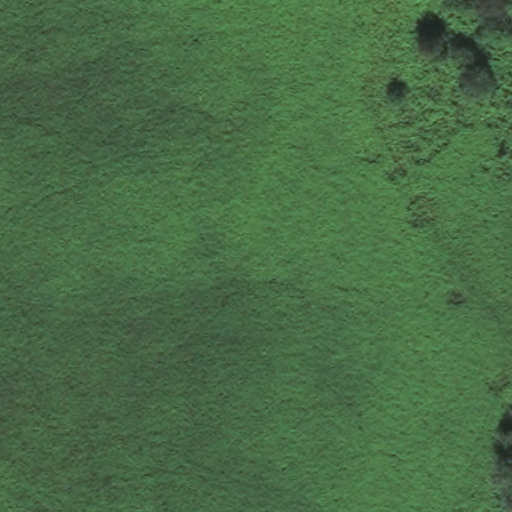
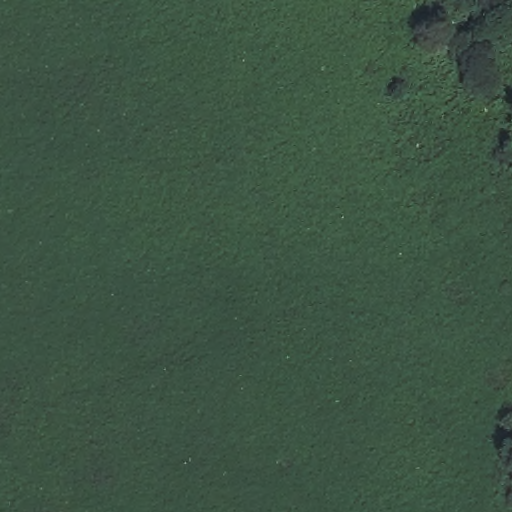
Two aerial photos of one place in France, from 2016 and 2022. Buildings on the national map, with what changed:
[]

